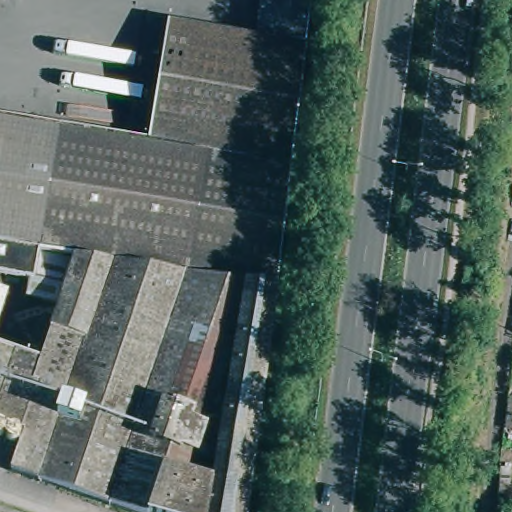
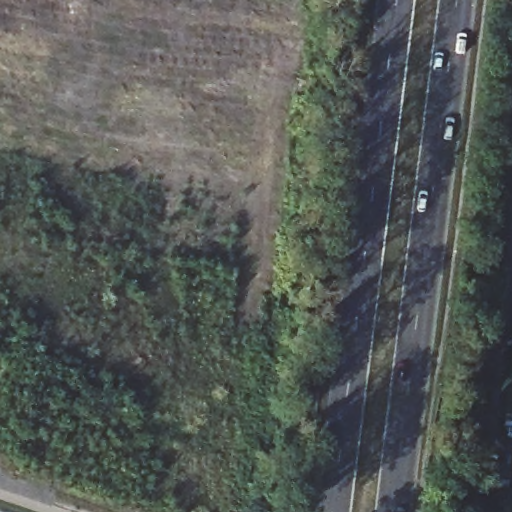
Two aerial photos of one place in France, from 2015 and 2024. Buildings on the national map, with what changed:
demolished [(243,33),(258,36),(284,40),(309,44),(309,49),(305,71),(301,107),(300,115),(297,141),(296,161),(292,160),(265,156),(245,152),(225,150),(215,148),(189,144),(182,143),(200,26),(243,33)]
demolished [(62,147),(50,214),(45,247),(0,239),(0,115),(65,125),(62,147)]
demolished [(62,147),(65,125),(82,127),(130,135),(151,137),(155,138),(179,142),(182,143),(189,144),(215,148),(225,150),(245,152),(230,245),(212,242),(185,237),(174,235),(167,234),(118,226),(115,225),(67,217),(66,217),(50,214),(62,147)]
demolished [(265,156),(292,160),(280,253),(250,248),(230,245),(245,152),(265,156)]
demolished [(187,270),(79,252),(45,247),(50,214),(66,217),(67,217),(115,225),(118,226),(167,234),(174,235),(185,237),(212,242),(230,245),(225,277),(187,270)]
demolished [(134,507),(112,500),(10,465),(22,427),(15,425),(57,296),(24,288),(27,271),(0,266),(0,239),(45,247),(79,252),(187,270),(225,277),(276,285),(246,512),(151,512),(134,507)]
demolished [(250,248),(280,253),(282,254),(276,285),(225,277),(230,245),(250,248)]
demolished [(0,377),(0,362),(3,368),(0,377)]

